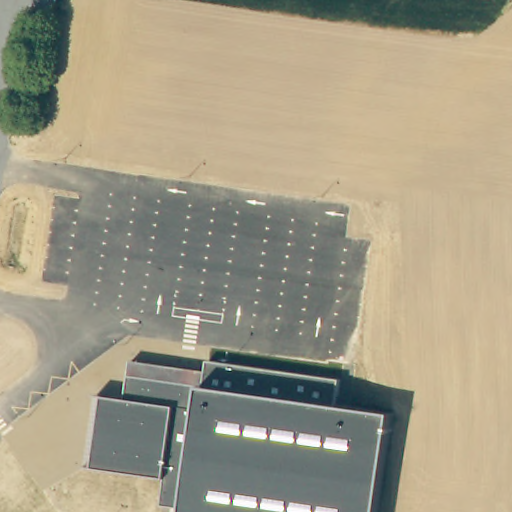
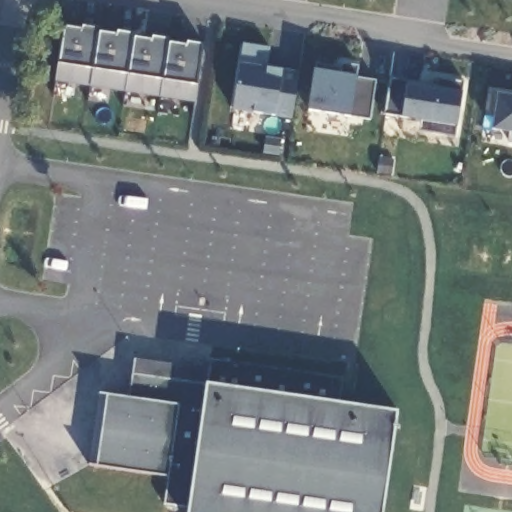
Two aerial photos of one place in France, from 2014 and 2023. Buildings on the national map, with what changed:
new [(47,82),(51,63),(56,64),(61,27),(77,29),(78,25),(95,28),(94,32),(114,35),(114,31),(130,33),(129,37),(149,40),(149,36),(165,38),(164,42),(185,46),(185,42),(201,44),(194,85),(191,101),(47,82)]
new [(237,63),(241,43),(267,47),(265,67),(296,72),(290,119),(231,110),(239,63),(237,63)]
new [(315,62),(341,66),(341,62),(357,66),(353,75),(358,76),(375,80),(368,118),(306,110),(315,62)]
new [(419,130),(420,120),(402,117),(385,113),(390,78),(436,87),(437,76),(463,80),(462,91),(456,126),(455,135),(419,130)]
new [(512,96),(512,143),(507,142),(507,131),(492,129),(495,114),(491,113),(491,91),(497,93),(512,96)]
unchanged [(134,360),(207,371),(209,360),(338,379),(336,404),(395,413),(381,512),(186,512),(186,508),(164,504),(166,476),(96,466),(87,465),(97,394),(106,395),(127,398),(134,360)]

